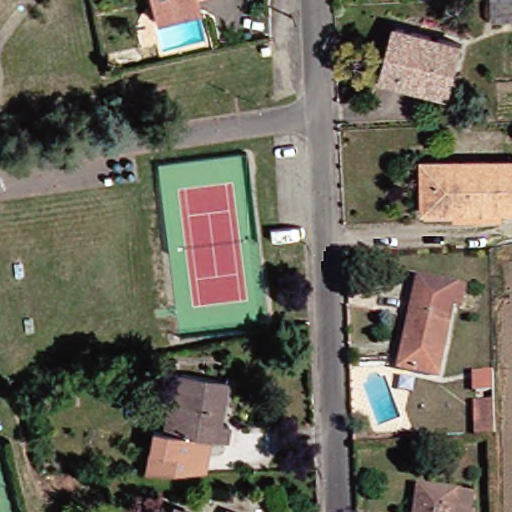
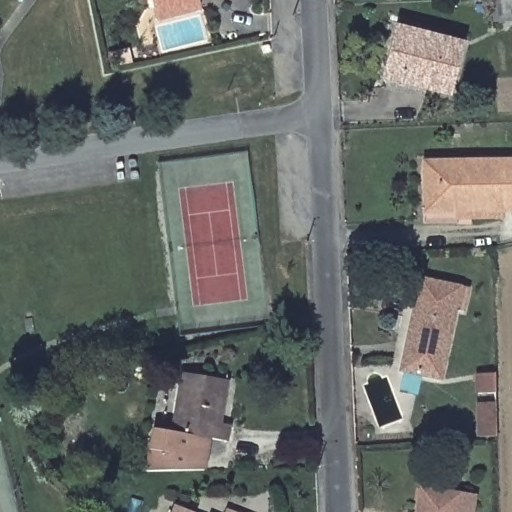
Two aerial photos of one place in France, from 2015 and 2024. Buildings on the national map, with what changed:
unchanged [(154,0),(203,0),(206,12),(161,24),(157,9),(154,0)]
unchanged [(501,0),(512,0),(512,20),(502,20),(501,0)]
unchanged [(381,81),(394,27),(464,45),(452,90),(450,99),(397,85),(381,81)]
unchanged [(428,165),(512,163),(512,212),(509,212),(460,214),(428,214),(428,165)]
unchanged [(445,375),(405,367),(412,338),(417,340),(430,277),(464,285),(445,375)]
unchanged [(220,425),(230,426),(228,442),(210,439),(205,470),(136,471),(144,427),(154,429),(163,371),(173,373),(227,382),(220,425)]
unchanged [(495,401),(496,437),(477,438),(475,401),(495,401)]
unchanged [(417,512),(420,490),(426,490),(461,496),(459,512),(417,512)]
unchanged [(459,512),(461,496),(476,498),(474,512),(459,512)]
unchanged [(194,512),(176,512),(178,505),(194,512)]
unchanged [(234,512),(230,512),(230,510),(234,512)]

